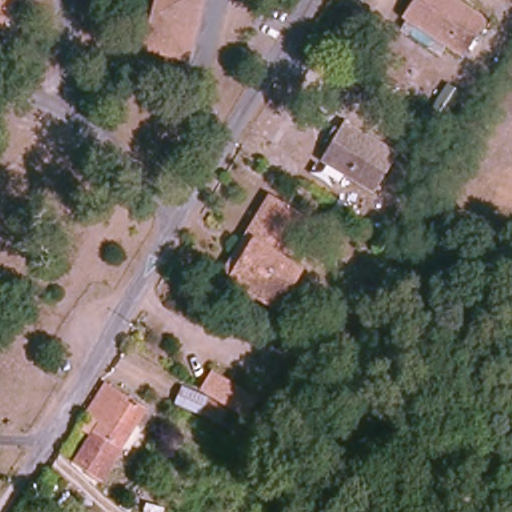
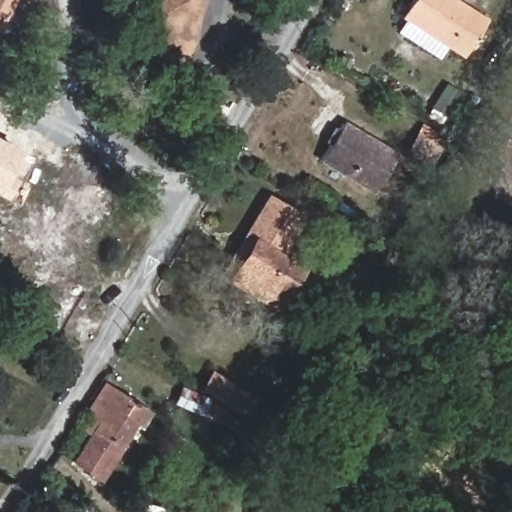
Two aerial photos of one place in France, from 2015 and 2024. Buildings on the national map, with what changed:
unchanged [(0,16),(0,0),(9,0),(0,16)]
unchanged [(183,60),(140,49),(152,0),(198,0),(183,60)]
unchanged [(467,56),(405,20),(417,0),(463,0),(493,18),(467,56)]
unchanged [(376,196),(322,163),(347,125),(400,159),(376,196)]
new [(20,150),(8,171),(21,179),(10,201),(0,196),(0,140),(20,150)]
unchanged [(285,254),(303,266),(280,303),(234,274),(257,233),(246,227),(268,196),(307,219),(285,254)]
unchanged [(112,387),(137,401),(98,470),(72,454),(112,387)]
unchanged [(207,388),(251,414),(240,436),(195,409),(207,388)]

